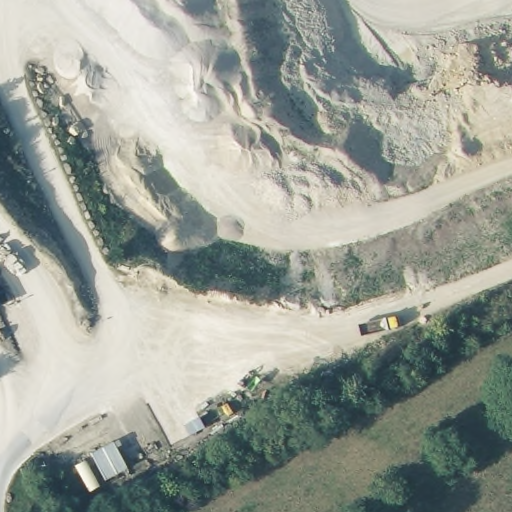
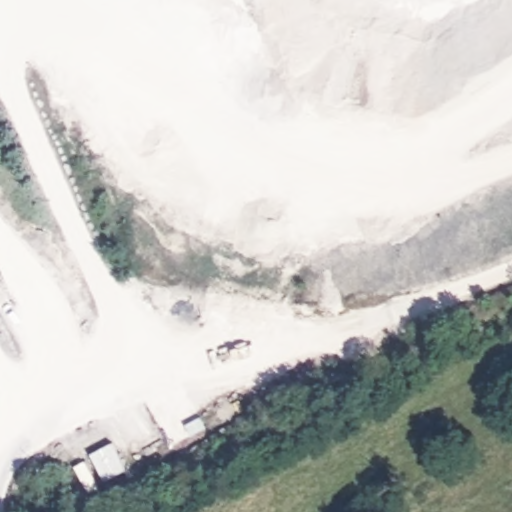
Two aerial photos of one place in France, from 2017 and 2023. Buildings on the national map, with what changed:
unchanged [(127,469),(105,480),(90,453),(114,442),(127,469)]

